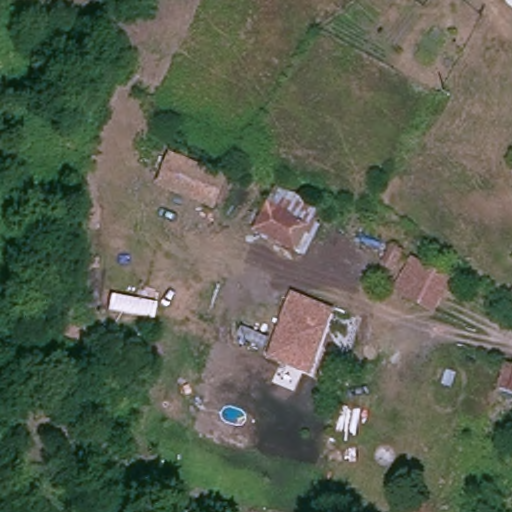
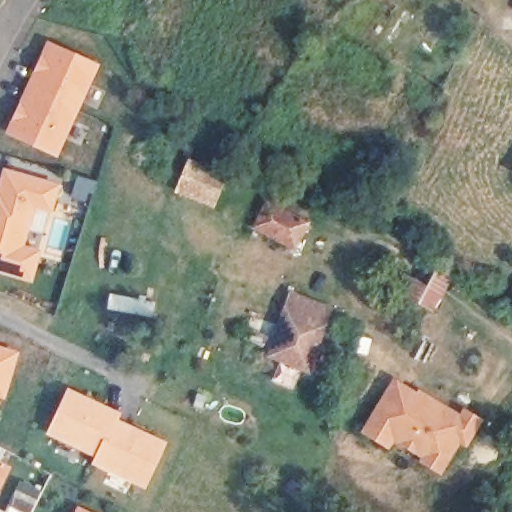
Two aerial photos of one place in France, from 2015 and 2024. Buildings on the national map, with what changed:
new [(59,159),(6,134),(48,40),(100,66),(59,159)]
unchanged [(161,181),(173,152),(225,174),(212,204),(161,181)]
new [(53,215),(36,210),(26,245),(43,251),(33,283),(0,274),(0,180),(4,167),(61,186),(53,215)]
unchanged [(279,197),(317,218),(304,242),(264,222),(279,197)]
unchanged [(459,276),(438,310),(390,289),(404,247),(459,276)]
unchanged [(313,367),(271,351),(291,302),(298,304),(303,291),(334,304),(329,319),(332,321),(313,367)]
new [(6,400),(0,398),(0,346),(20,352),(6,400)]
demolished [(501,387),(507,367),(512,368),(512,391),(501,387)]
new [(417,391),(420,387),(461,412),(465,407),(486,418),(468,448),(461,445),(442,475),(419,461),(420,457),(395,442),(390,450),(361,433),(395,377),(417,391)]
new [(66,387),(121,412),(118,418),(93,457),(45,433),(66,387)]
new [(93,457),(118,418),(168,442),(145,490),(90,463),(93,457)]
new [(0,487),(0,465),(9,470),(0,487)]
new [(20,479),(41,490),(30,512),(0,512),(0,509),(5,511),(20,479)]
new [(80,510),(85,512),(79,512),(80,510)]

